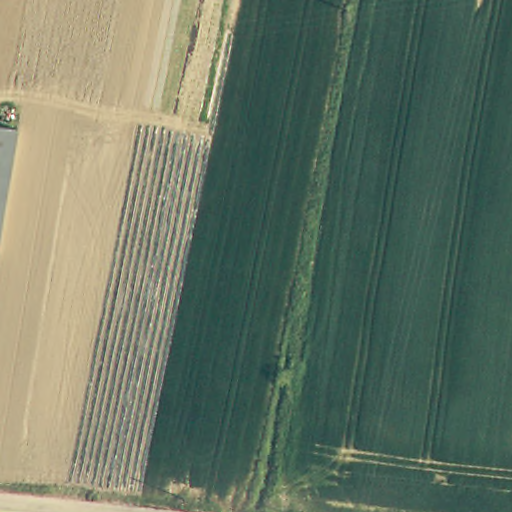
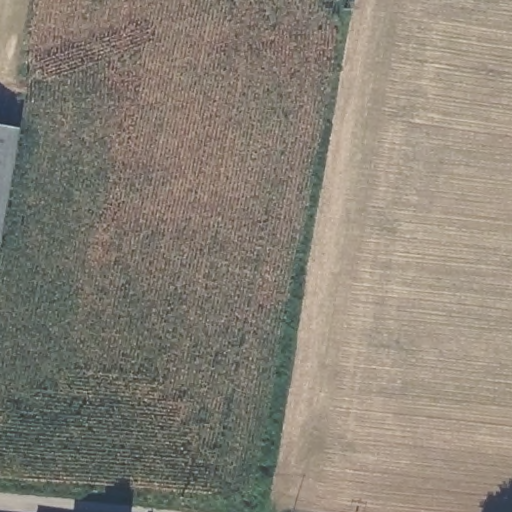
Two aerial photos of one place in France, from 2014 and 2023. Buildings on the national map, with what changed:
unchanged [(0,203),(0,127),(14,129),(0,203)]

